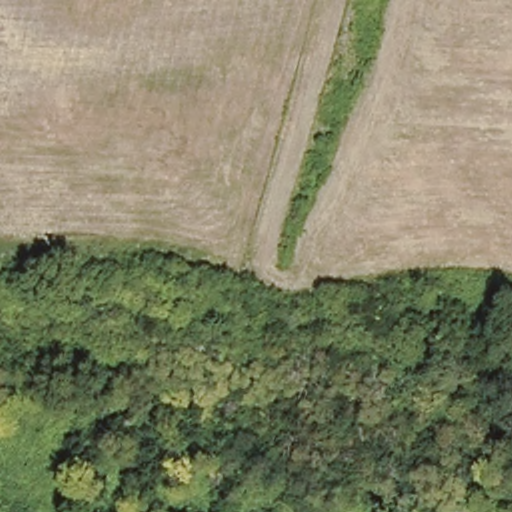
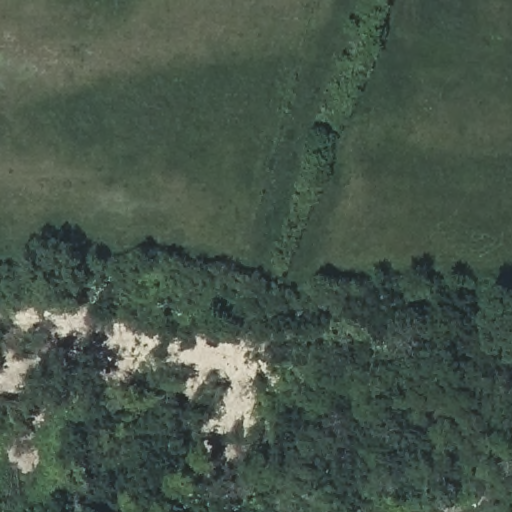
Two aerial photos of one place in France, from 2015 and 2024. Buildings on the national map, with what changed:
[]

